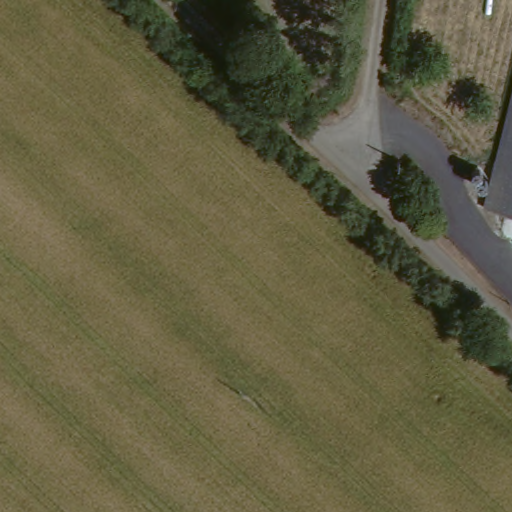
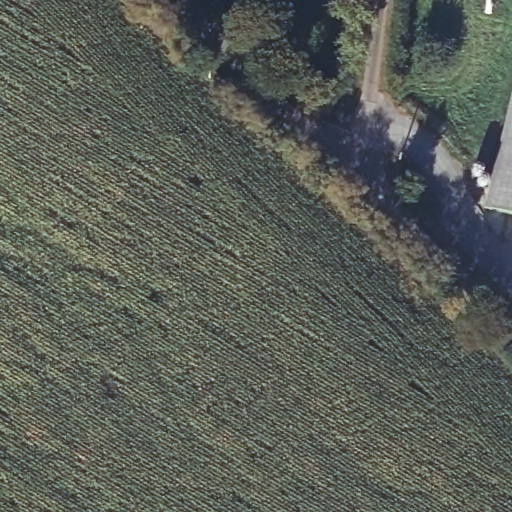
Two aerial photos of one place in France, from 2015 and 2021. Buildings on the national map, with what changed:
unchanged [(512,221),(495,217),(512,142),(512,221)]

